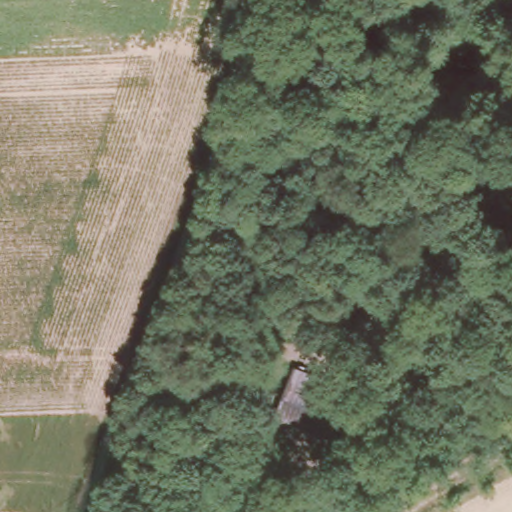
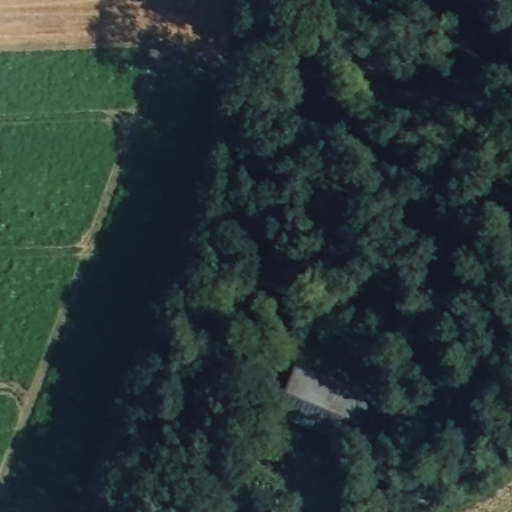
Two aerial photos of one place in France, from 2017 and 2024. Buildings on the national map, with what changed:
unchanged [(349,444),(275,414),(286,383),(290,372),(352,397),(366,402),(349,444)]

